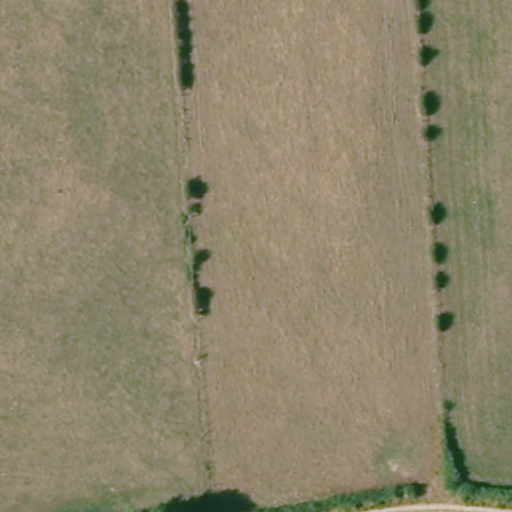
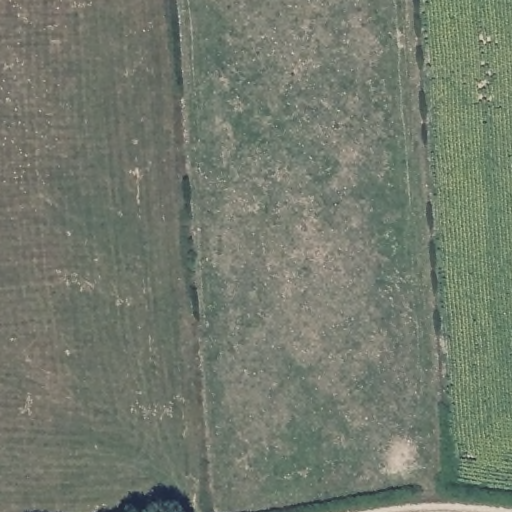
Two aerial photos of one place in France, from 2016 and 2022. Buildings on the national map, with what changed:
[]

